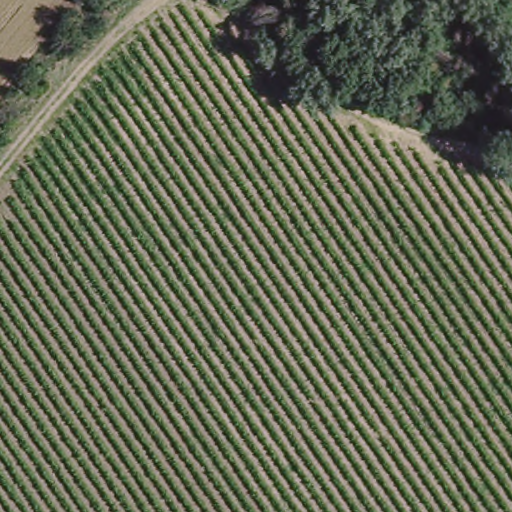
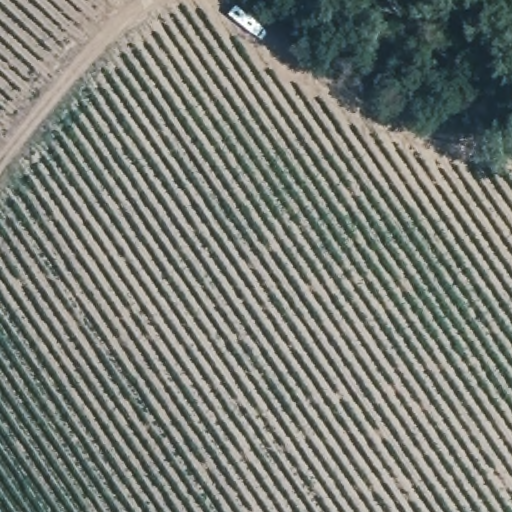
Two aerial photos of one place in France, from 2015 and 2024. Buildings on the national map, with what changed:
unchanged [(440,99),(410,84),(436,34),(466,50),(440,99)]

